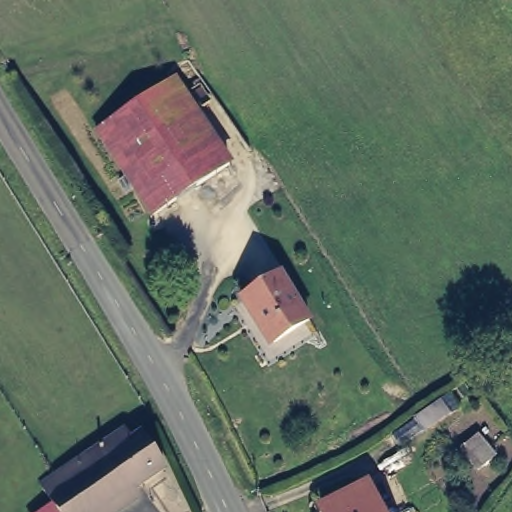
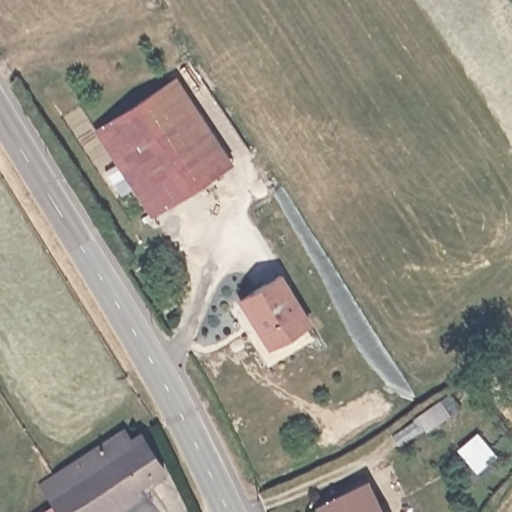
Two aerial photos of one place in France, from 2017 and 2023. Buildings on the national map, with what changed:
unchanged [(176,81),(232,163),(157,214),(101,131),(176,81)]
unchanged [(275,343),(259,317),(255,319),(242,299),(280,275),(309,322),(275,343)]
unchanged [(447,397),(455,409),(425,431),(417,419),(447,397)]
unchanged [(412,423),(419,432),(399,446),(392,437),(412,423)]
unchanged [(476,435),(494,457),(481,467),(464,446),(476,435)]
unchanged [(110,512),(57,512),(59,511),(45,491),(59,481),(126,436),(132,445),(144,439),(167,473),(110,512)]
unchanged [(361,488),(373,512),(318,512),(317,509),(361,488)]

